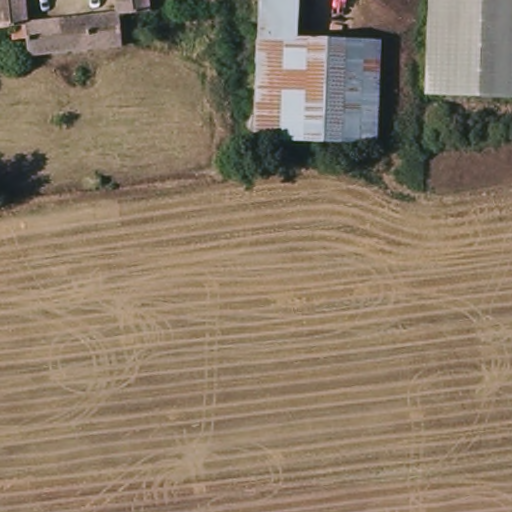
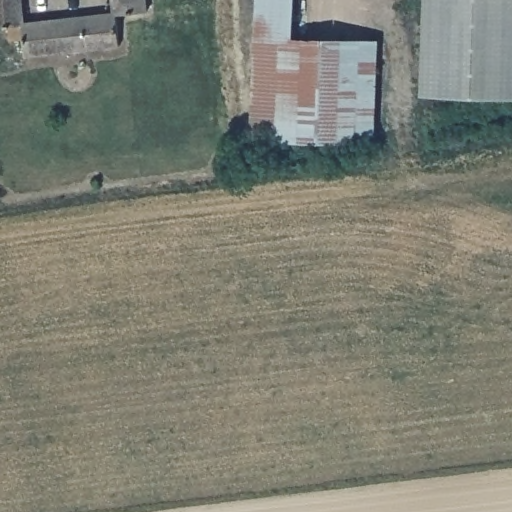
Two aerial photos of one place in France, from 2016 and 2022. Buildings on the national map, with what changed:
unchanged [(6,28),(0,29),(0,0),(20,0),(24,26),(6,28)]
unchanged [(146,0),(148,11),(115,15),(114,0),(146,0)]
unchanged [(382,40),(376,145),(253,140),(259,0),(297,0),(296,38),(382,40)]
unchanged [(512,0),(512,98),(419,95),(422,0),(512,0)]
unchanged [(24,26),(115,15),(121,48),(29,56),(26,41),(10,44),(6,28),(24,26)]

